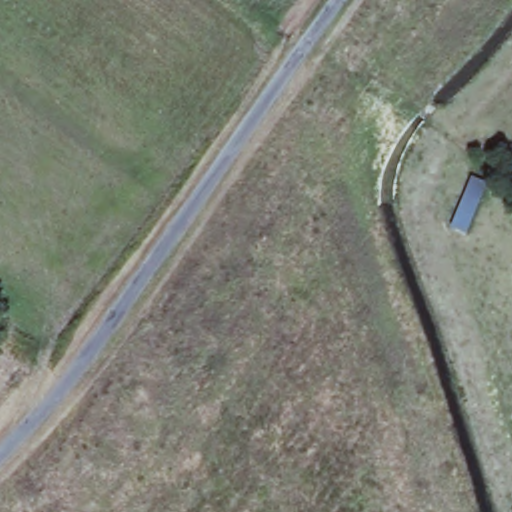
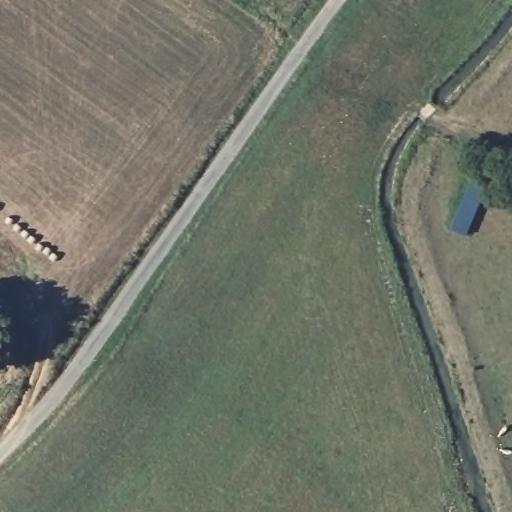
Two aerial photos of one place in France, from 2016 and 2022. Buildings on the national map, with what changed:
unchanged [(493,184),(471,235),(451,230),(474,175),(493,184)]

